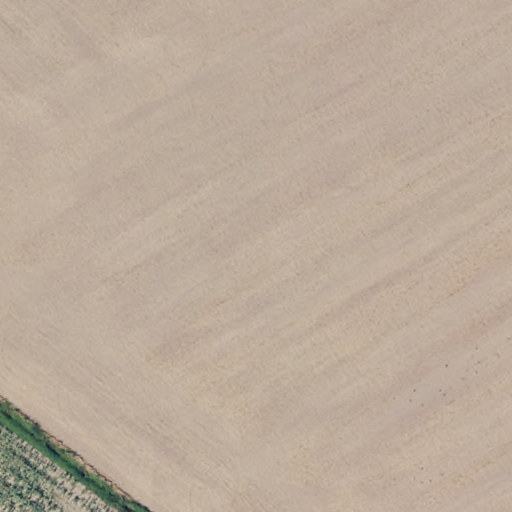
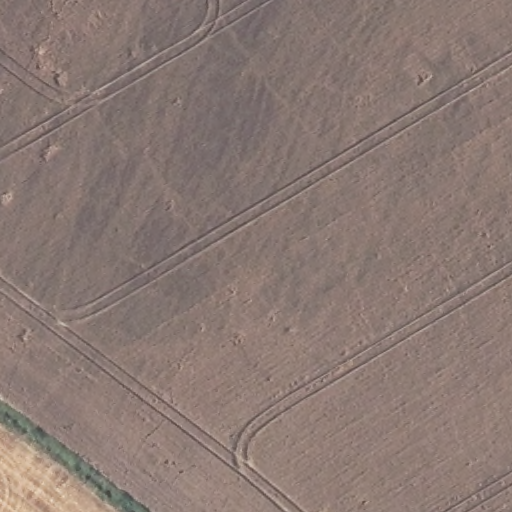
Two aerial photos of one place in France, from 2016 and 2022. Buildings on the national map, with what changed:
[]

